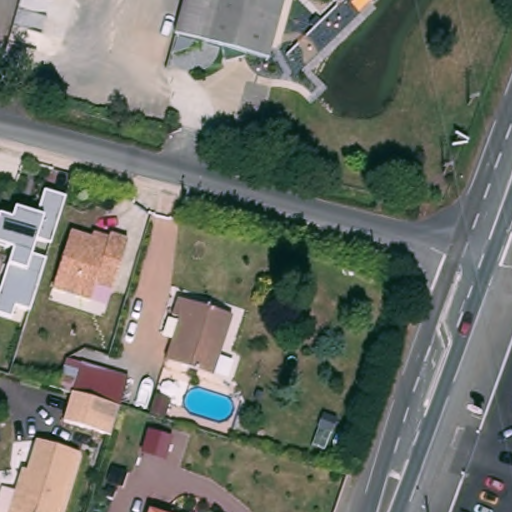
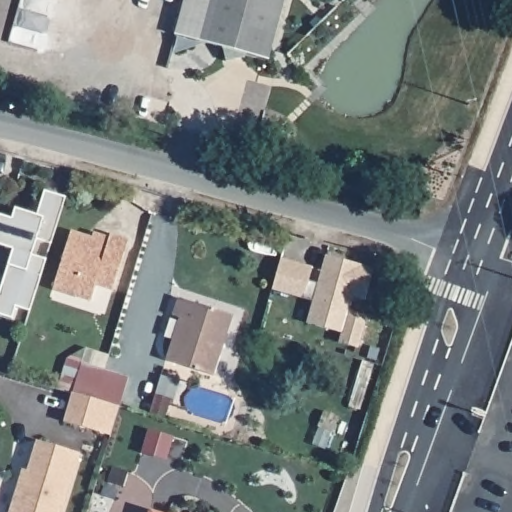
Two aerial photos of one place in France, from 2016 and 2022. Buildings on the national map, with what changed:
unchanged [(249,54),(248,56),(228,60),(225,47),(202,41),(214,0),(287,0),(270,59),(249,54)]
unchanged [(67,193),(52,241),(37,237),(32,253),(46,257),(30,309),(16,305),(12,315),(0,312),(0,292),(9,263),(12,247),(0,243),(0,216),(1,213),(15,217),(17,206),(37,211),(46,188),(67,193)]
unchanged [(130,237),(114,287),(97,282),(92,298),(55,286),(74,228),(94,235),(95,231),(110,236),(112,231),(130,237)]
new [(281,257),(313,266),(309,279),(319,282),(326,254),(375,268),(366,299),(354,295),(350,310),(367,315),(359,346),(340,341),(342,332),(307,322),(313,299),(273,288),(281,257)]
unchanged [(177,314),(184,297),(237,314),(218,374),(170,359),(184,317),(177,314)]
unchanged [(74,391),(82,361),(130,376),(121,405),(74,391)]
unchanged [(112,434),(65,419),(74,391),(121,405),(113,431),(119,434),(116,443),(110,441),(111,435),(112,434)]
unchanged [(85,453),(67,512),(14,512),(24,480),(28,468),(33,469),(42,438),(85,453)]
unchanged [(155,512),(150,512),(150,510),(155,512)]

